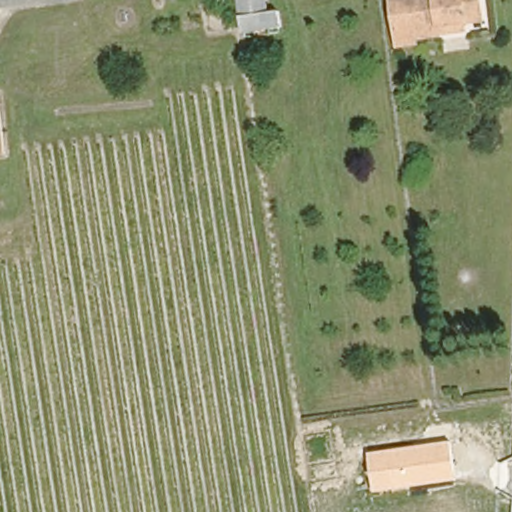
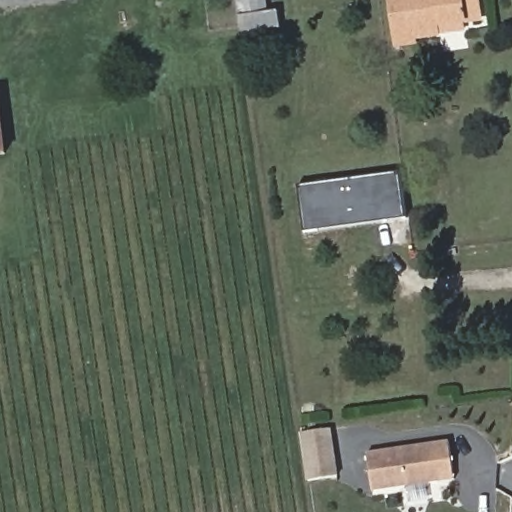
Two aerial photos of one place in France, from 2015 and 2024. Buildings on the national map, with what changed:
unchanged [(246,41),(244,25),(240,0),(272,0),(274,21),(276,36),(246,41)]
unchanged [(393,47),(393,38),(391,0),(481,0),(482,11),(483,20),(468,22),(469,30),(444,33),(418,36),(419,45),(393,47)]
unchanged [(0,95),(9,155),(0,157),(0,96),(0,95)]
new [(304,231),(298,186),(399,173),(405,218),(304,231)]
new [(339,477),(307,481),(300,433),(332,428),(339,477)]
unchanged [(372,492),(366,453),(449,440),(455,480),(372,492)]

